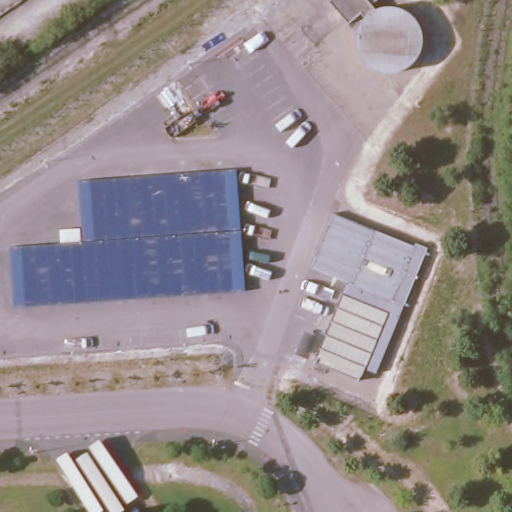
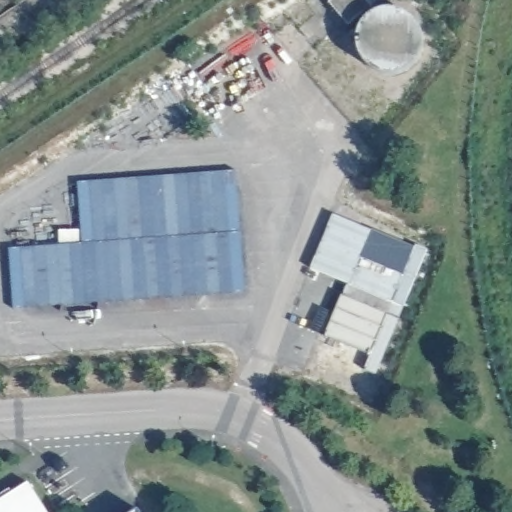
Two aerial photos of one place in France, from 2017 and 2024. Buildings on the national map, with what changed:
unchanged [(343,24),(326,2),(329,0),(363,0),(367,5),(343,24)]
unchanged [(236,170),(246,291),(13,308),(9,248),(83,243),(78,181),(236,170)]
unchanged [(333,214),(414,246),(416,244),(428,248),(376,373),(364,368),(360,379),(315,362),(343,294),(348,283),(312,267),(333,214)]
new [(28,481),(48,512),(0,512),(0,499),(28,481)]
unchanged [(139,512),(136,512),(138,511),(139,512)]

